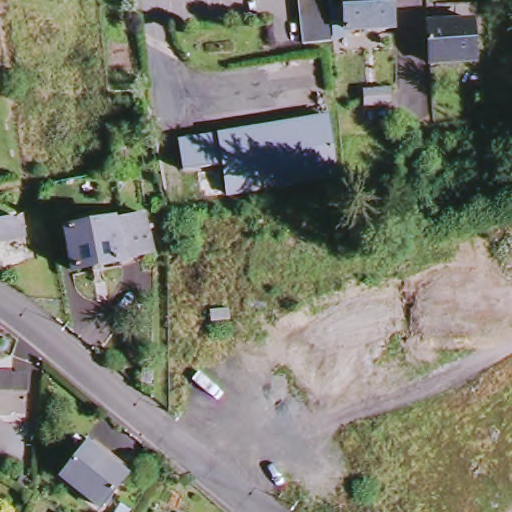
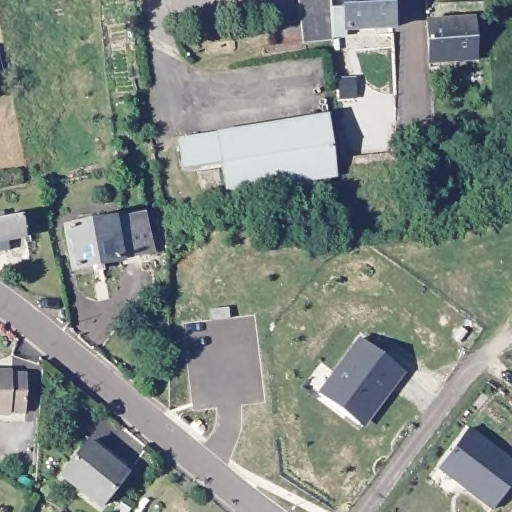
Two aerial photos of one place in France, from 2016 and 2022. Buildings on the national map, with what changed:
unchanged [(309,42),(304,0),(336,0),(337,9),(338,38),(338,41),(309,42)]
unchanged [(345,37),(338,38),(337,9),(350,8),(349,0),(374,0),(375,7),(397,6),(398,27),(346,30),(345,37)]
unchanged [(480,22),(482,59),(436,62),(434,24),(480,22)]
unchanged [(390,86),(390,104),(364,105),(363,88),(390,86)]
unchanged [(177,145),(324,121),(332,180),(225,197),(220,168),(181,174),(177,145)]
unchanged [(215,172),(220,198),(199,203),(193,177),(215,172)]
unchanged [(1,212),(13,209),(15,217),(31,214),(34,233),(0,241),(0,220),(2,220),(1,212)]
unchanged [(157,256),(77,272),(68,229),(147,212),(154,250),(157,256)]
new [(359,338),(407,372),(365,428),(319,394),(359,338)]
unchanged [(14,378),(29,378),(29,414),(14,414),(14,417),(0,417),(0,374),(14,374),(14,378)]
new [(465,431),(512,466),(512,482),(490,510),(463,490),(465,487),(437,467),(465,431)]
unchanged [(95,442),(132,473),(105,506),(67,475),(95,442)]

